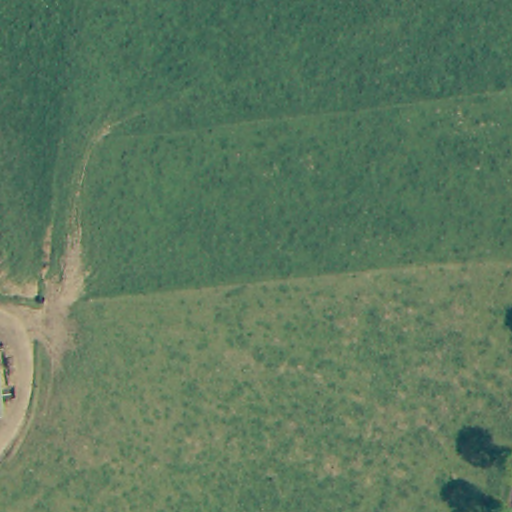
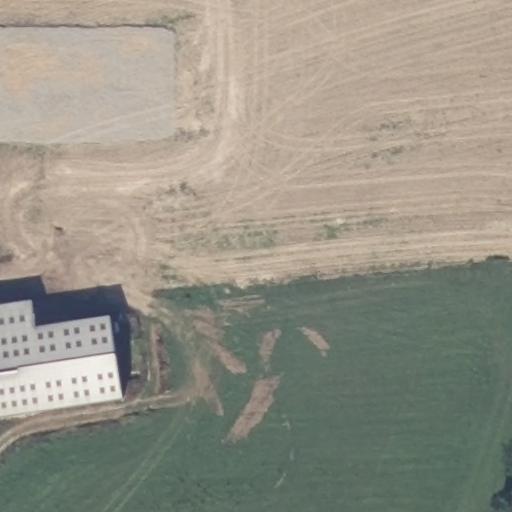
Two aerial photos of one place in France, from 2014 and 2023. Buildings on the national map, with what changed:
new [(31,300),(38,327),(110,317),(124,398),(0,416),(0,305),(31,300)]

